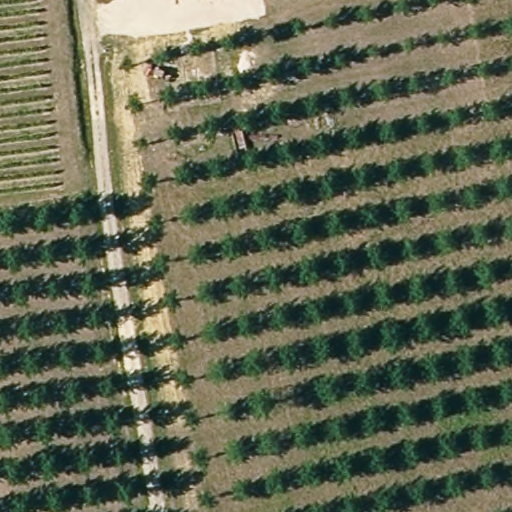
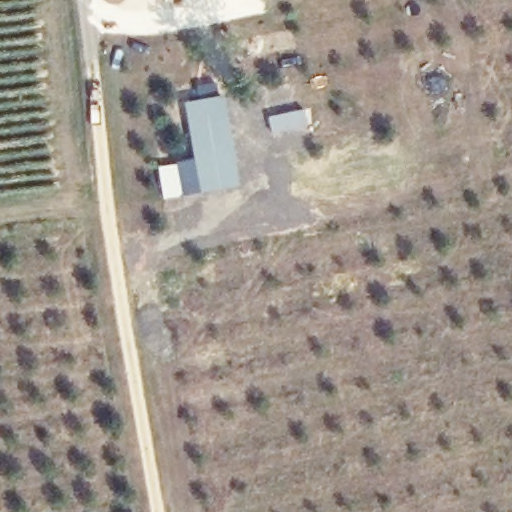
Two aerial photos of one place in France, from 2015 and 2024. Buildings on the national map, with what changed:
new [(216,83),(220,96),(224,95),(239,186),(182,196),(176,163),(194,159),(184,103),(199,99),(197,87),(216,83)]

